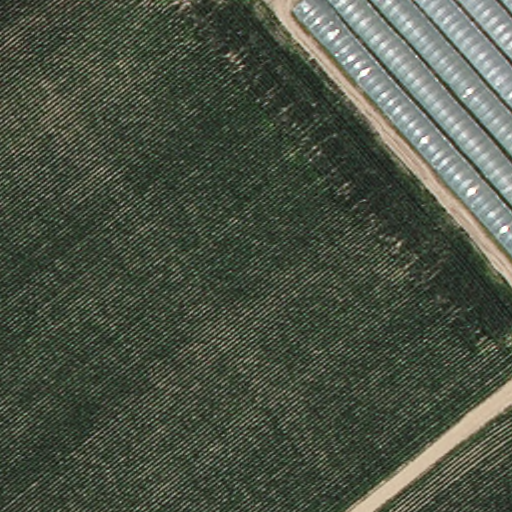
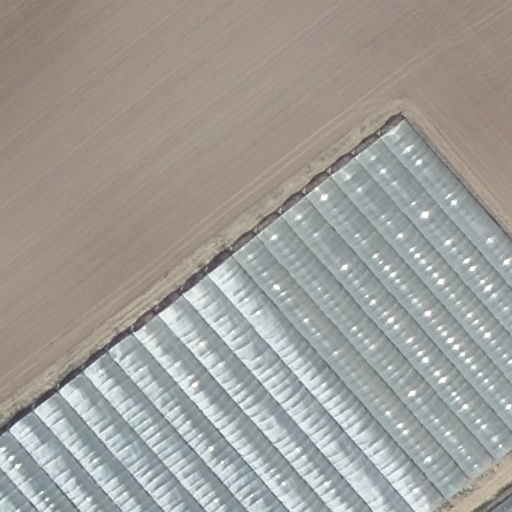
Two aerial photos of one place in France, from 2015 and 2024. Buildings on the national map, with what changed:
demolished [(298,2),(301,0),(512,0),(512,251),(298,2)]
new [(512,242),(512,448),(432,512),(0,512),(0,439),(405,120),(512,242)]
demolished [(512,452),(512,512),(432,512),(512,452)]
new [(512,497),(512,512),(492,512),(512,497)]

